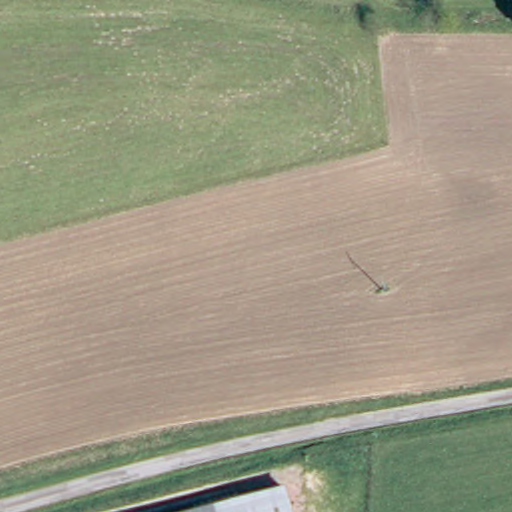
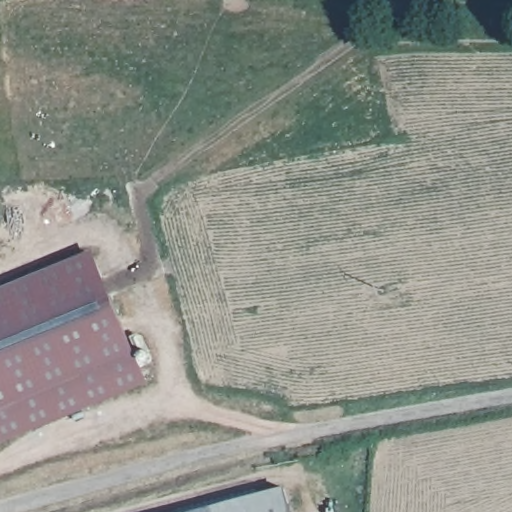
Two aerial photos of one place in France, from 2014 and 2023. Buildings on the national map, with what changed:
new [(79,264),(132,391),(0,446),(0,297),(79,264)]
unchanged [(284,487),(291,512),(202,512),(202,511),(284,487)]
unchanged [(196,512),(202,511),(202,512),(196,512)]

